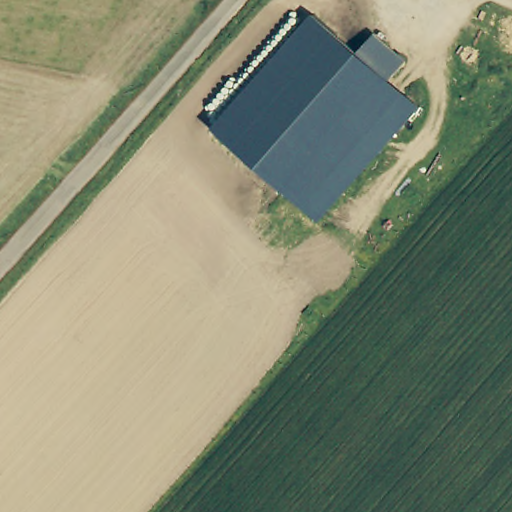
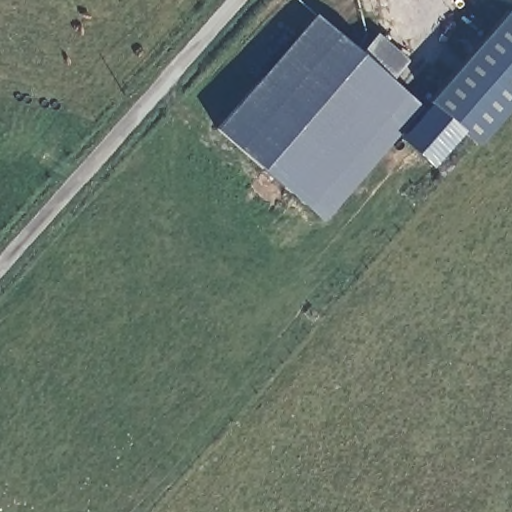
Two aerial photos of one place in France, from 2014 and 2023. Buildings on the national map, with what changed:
new [(397,159),(429,101),(508,10),(512,11),(512,106),(479,148),(463,136),(427,183),(397,159)]
unchanged [(416,106),(317,219),(220,131),(311,26),(356,66),(378,40),(404,61),(383,85),(416,106)]

